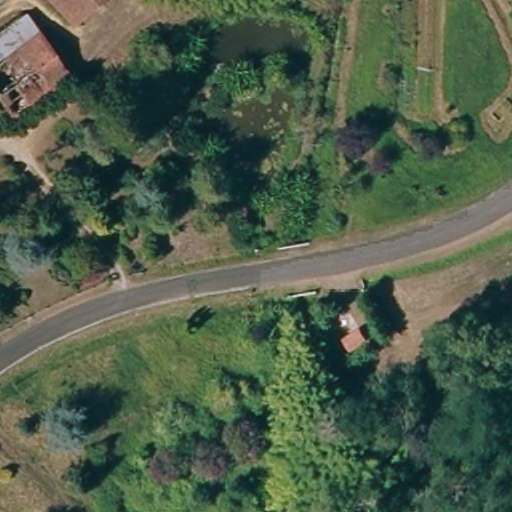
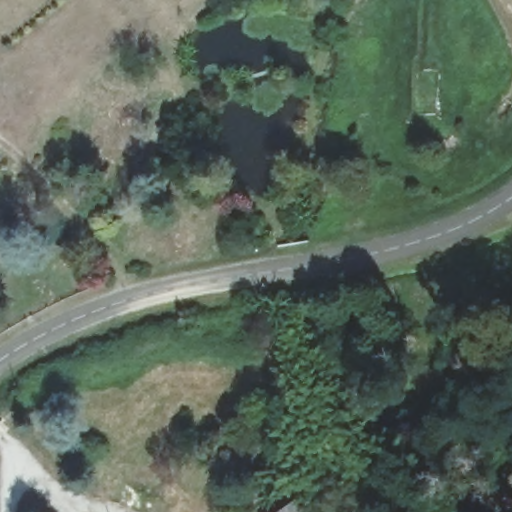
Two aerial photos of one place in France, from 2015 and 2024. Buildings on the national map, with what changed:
demolished [(72,9),(64,0),(83,0),(72,9)]
demolished [(15,107),(0,82),(0,65),(46,36),(69,74),(15,107)]
unchanged [(323,340),(337,332),(343,341),(329,349),(323,340)]
unchanged [(289,499),(292,497),(296,493),(312,512),(276,512),(283,505),(289,499)]

